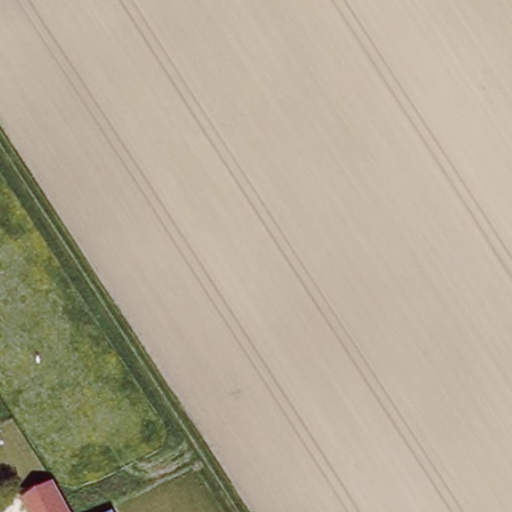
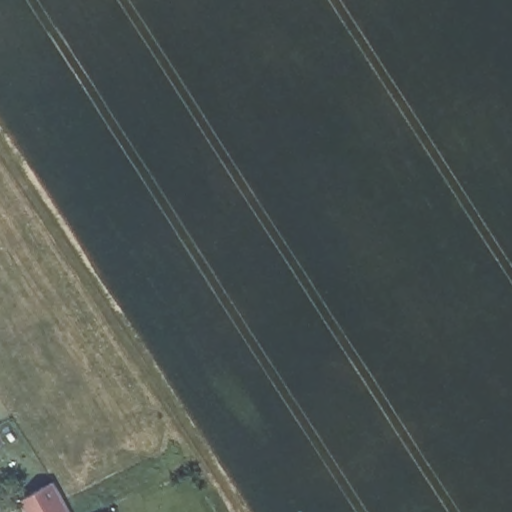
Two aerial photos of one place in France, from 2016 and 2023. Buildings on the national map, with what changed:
unchanged [(26,512),(18,500),(51,479),(70,512),(26,512)]

